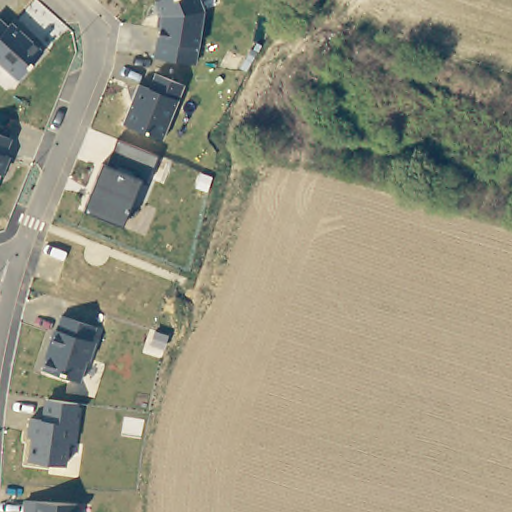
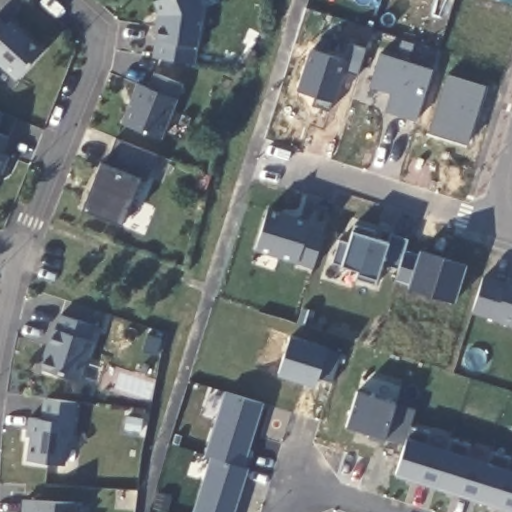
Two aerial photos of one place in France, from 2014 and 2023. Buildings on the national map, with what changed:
unchanged [(204,11),(195,64),(152,57),(159,18),(155,0),(199,0),(204,11)]
unchanged [(11,20),(44,52),(17,80),(0,63),(0,18),(7,25),(11,20)]
new [(311,47),(344,57),(349,40),(365,45),(356,74),(341,69),(329,109),(311,103),(314,94),(298,89),(311,47)]
new [(380,50),(432,66),(416,117),(385,107),(391,90),(369,83),(380,50)]
new [(446,71),(484,83),(466,140),(428,129),(446,71)]
unchanged [(185,84),(177,100),(161,139),(122,124),(137,83),(149,87),(153,72),(185,84)]
unchanged [(5,153),(10,155),(0,178),(0,133),(11,137),(5,153)]
unchanged [(157,156),(148,183),(140,180),(122,224),(83,209),(101,162),(107,164),(116,140),(157,156)]
new [(308,227),(324,232),(313,270),(298,264),(254,250),(266,206),(311,220),(308,227)]
new [(398,270),(381,264),(376,279),(375,285),(354,280),(357,271),(342,266),(331,262),(338,241),(347,247),(354,230),(388,242),(391,234),(407,239),(398,270)]
new [(405,247),(419,252),(420,247),(466,261),(454,299),(408,285),(410,280),(395,276),(398,270),(405,247)]
new [(470,313),(482,275),(507,282),(508,277),(512,279),(512,325),(470,313)]
unchanged [(95,325),(91,338),(95,340),(89,361),(85,360),(79,380),(40,367),(52,327),(55,328),(59,315),(95,325)]
new [(290,335),(341,350),(332,380),(318,375),(316,382),(278,370),(290,335)]
new [(416,406),(410,426),(405,441),(386,435),(385,440),(367,434),(369,430),(345,423),(357,387),(416,406)]
new [(226,388),(263,400),(249,446),(254,448),(249,465),(211,453),(206,451),(226,388)]
unchanged [(79,401),(76,443),(69,442),(66,465),(27,460),(30,436),(25,436),(27,417),(41,417),(44,397),(79,401)]
new [(511,512),(395,475),(407,437),(410,426),(430,433),(426,443),(448,450),(451,440),(470,446),(467,456),(490,463),(492,454),(510,459),(505,470),(512,471),(512,512),(511,512)]
new [(249,465),(234,512),(194,512),(211,453),(249,465)]
unchanged [(76,501),(76,512),(22,512),(22,499),(34,499),(76,501)]

